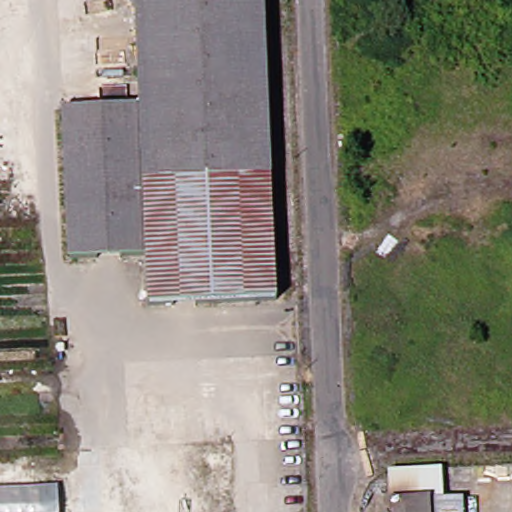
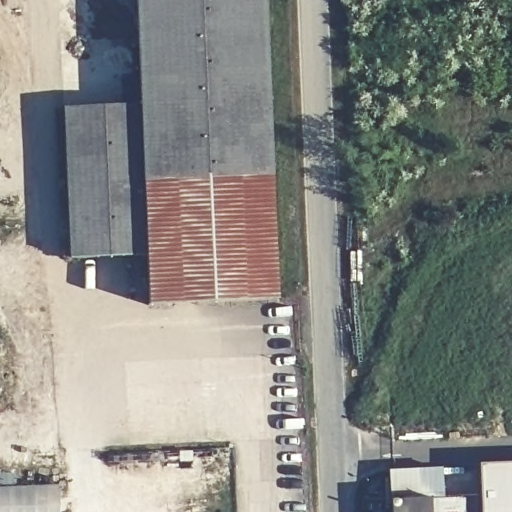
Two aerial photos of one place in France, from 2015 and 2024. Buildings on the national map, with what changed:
unchanged [(281,297),(155,304),(153,252),(77,256),(71,109),(147,106),(143,0),(269,0),(281,297)]
new [(512,512),(481,512),(479,465),(512,464),(512,512)]
unchanged [(443,502),(465,502),(466,512),(393,512),(393,503),(395,470),(445,471),(443,502)]
unchanged [(60,512),(0,512),(0,488),(59,485),(60,512)]

